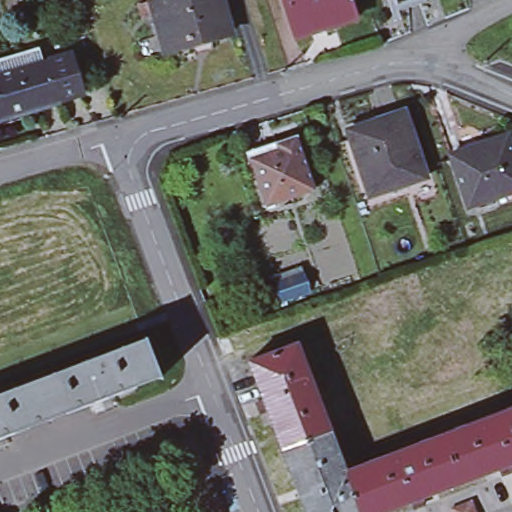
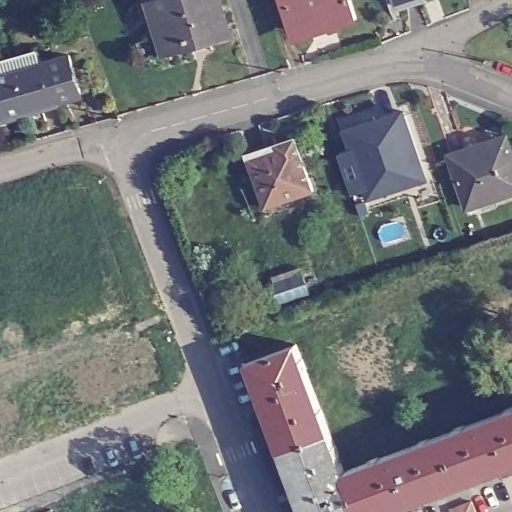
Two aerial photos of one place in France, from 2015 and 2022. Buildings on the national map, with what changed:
unchanged [(225,35),(210,40),(205,42),(203,34),(181,40),(183,44),(160,51),(146,7),(168,0),(213,0),(225,35)]
unchanged [(295,44),(291,34),(281,0),(351,0),(357,21),(326,30),(327,35),(295,44)]
unchanged [(397,10),(394,1),(394,0),(425,0),(425,1),(397,10)]
unchanged [(77,57),(88,95),(57,104),(45,67),(77,57)]
unchanged [(57,104),(5,119),(0,104),(0,80),(45,67),(57,104)]
unchanged [(0,120),(0,104),(5,119),(0,120)]
unchanged [(373,125),(371,118),(401,109),(424,174),(367,193),(347,134),(373,125)]
unchanged [(278,146),(276,139),(296,132),(315,187),(267,204),(250,155),(278,146)]
unchanged [(478,142),(480,149),(507,140),(512,154),(512,188),(466,204),(448,152),(478,142)]
unchanged [(303,271),(310,291),(285,299),(277,279),(303,271)]
demolished [(0,437),(0,393),(146,338),(160,377),(0,437)]
unchanged [(244,362),(292,343),(325,432),(277,449),(244,362)]
unchanged [(512,407),(512,461),(456,482),(438,434),(512,407)]
unchanged [(340,472),(338,472),(353,512),(300,512),(277,449),(325,432),(340,472)]
unchanged [(438,434),(456,482),(378,512),(353,512),(338,472),(340,472),(438,434)]

